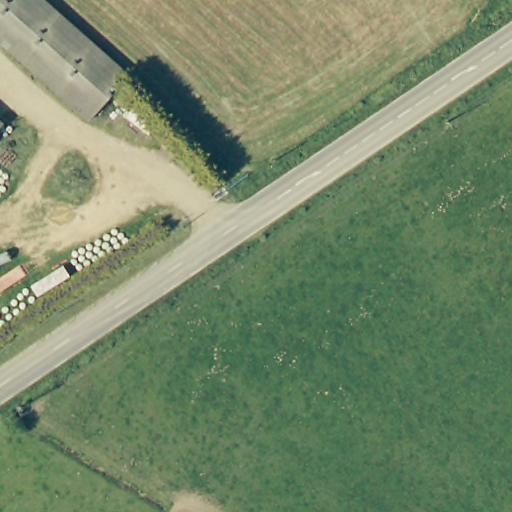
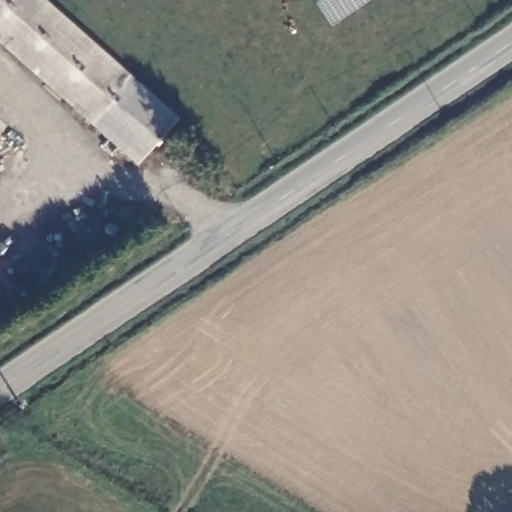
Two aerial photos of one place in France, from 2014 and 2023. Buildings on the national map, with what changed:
unchanged [(132,73),(93,118),(0,36),(0,0),(51,0),(132,73)]
new [(138,163),(89,123),(93,118),(132,73),(178,116),(138,163)]

